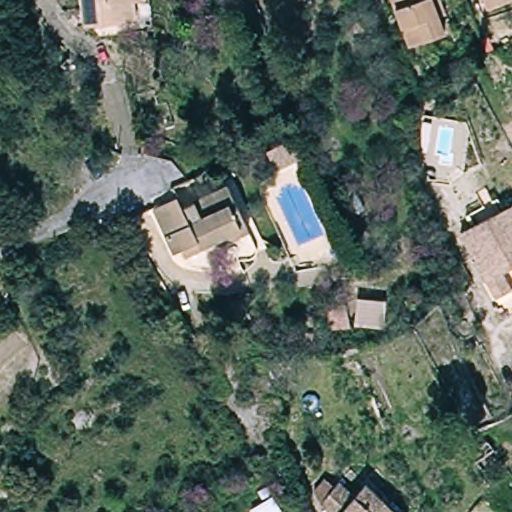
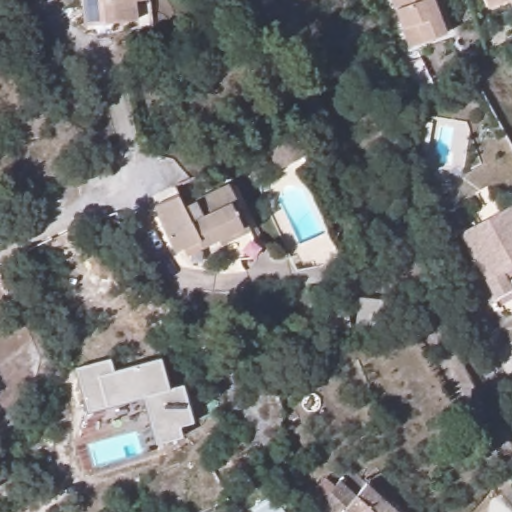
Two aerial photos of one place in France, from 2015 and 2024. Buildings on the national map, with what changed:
unchanged [(133,2),(134,24),(77,26),(75,0),(139,0),(140,0),(133,2)]
unchanged [(401,44),(385,0),(422,0),(434,32),(401,44)]
unchanged [(466,0),(512,0),(471,16),(466,0)]
unchanged [(185,179),(190,188),(214,177),(238,225),(208,239),(207,234),(163,255),(138,203),(162,194),(162,190),(172,184),(185,179)]
unchanged [(512,211),(512,277),(509,279),(512,285),(512,298),(500,304),(463,237),(512,211)]
new [(110,358),(113,371),(160,358),(168,389),(182,385),(192,422),(177,426),(180,436),(155,444),(142,398),(86,414),(75,368),(110,358)]
unchanged [(320,499),(315,486),(325,474),(335,483),(340,477),(358,494),(370,481),(388,500),(402,512),(333,512),(320,499)]

